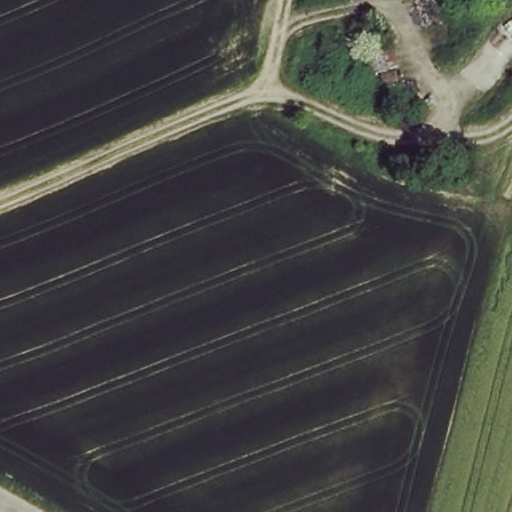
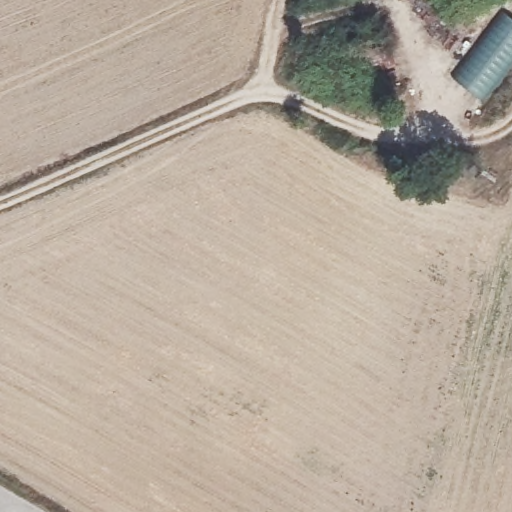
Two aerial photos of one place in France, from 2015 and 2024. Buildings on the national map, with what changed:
new [(502,12),(512,20),(512,60),(482,101),(452,77),(502,12)]

